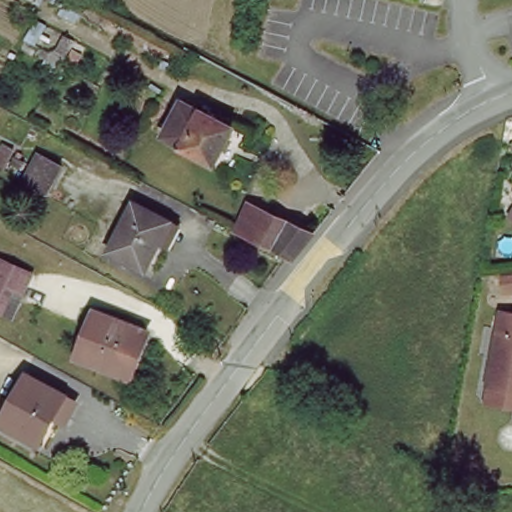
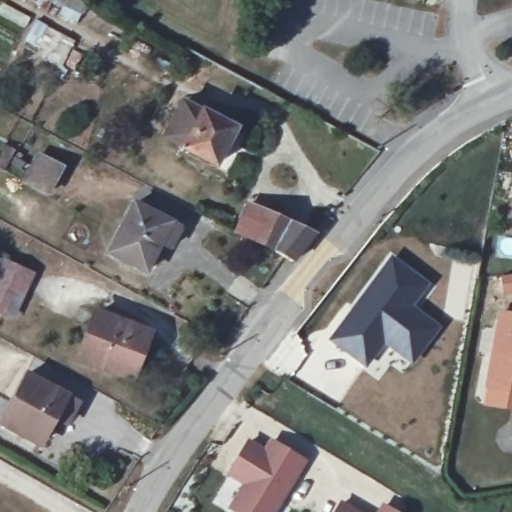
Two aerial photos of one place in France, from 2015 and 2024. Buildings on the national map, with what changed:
unchanged [(237,126),(228,143),(218,161),(188,145),(167,135),(178,116),(187,99),(237,126)]
unchanged [(27,189),(43,160),(64,171),(48,200),(27,189)]
unchanged [(178,219),(151,266),(117,246),(144,200),(178,219)]
unchanged [(292,269),(271,258),(273,255),(250,242),(237,236),(254,205),(268,212),(316,237),(292,269)]
new [(429,284),(413,305),(441,327),(413,365),(384,344),(366,368),(328,340),(391,255),(429,284)]
unchanged [(29,272),(19,292),(9,288),(0,307),(0,259),(29,272)]
unchanged [(490,375),(504,301),(512,303),(512,379),(490,375)]
unchanged [(152,327),(134,377),(85,357),(102,308),(152,327)]
unchanged [(71,395),(43,443),(7,422),(34,375),(71,395)]
unchanged [(485,398),(490,375),(512,379),(512,404),(485,398)]
new [(275,512),(233,512),(227,508),(242,483),(226,474),(248,437),(263,447),(269,437),(307,461),(275,512)]
new [(363,512),(332,512),(340,498),(363,512)]
new [(375,512),(382,502),(399,512),(375,512)]

